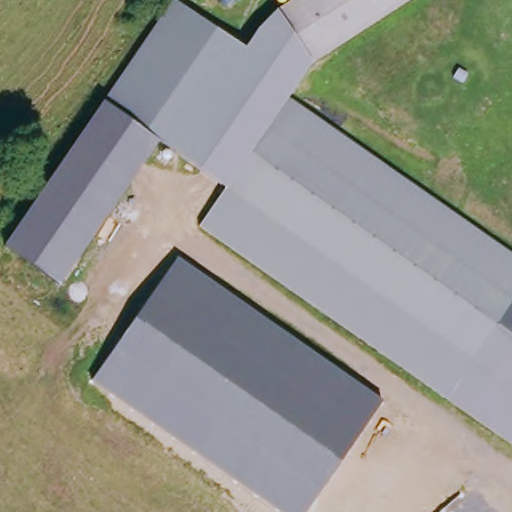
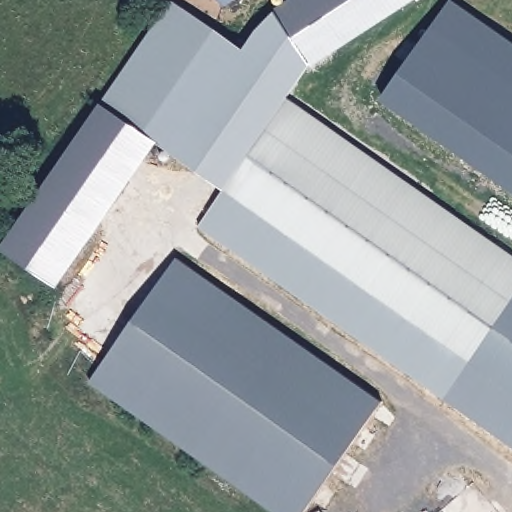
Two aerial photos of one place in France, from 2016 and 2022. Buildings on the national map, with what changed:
unchanged [(108,101),(176,0),(182,0),(261,45),(283,15),(305,0),(420,0),(316,66),(297,92),(294,96),(304,102),(306,103),(484,345),(472,361),(178,156),(108,101)]
new [(233,0),(226,4),(224,0),(233,0)]
new [(383,99),(451,0),(452,0),(512,41),(512,187),(383,99)]
unchanged [(163,145),(63,288),(5,250),(108,101),(163,145)]
unchanged [(512,255),(512,306),(484,345),(306,103),(512,255)]
unchanged [(472,361),(484,345),(512,306),(512,447),(203,229),(229,192),(472,361)]
unchanged [(383,400),(305,512),(278,512),(91,380),(178,257),(383,400)]

